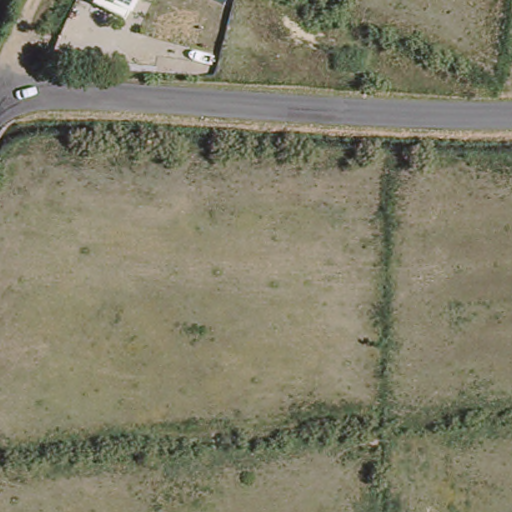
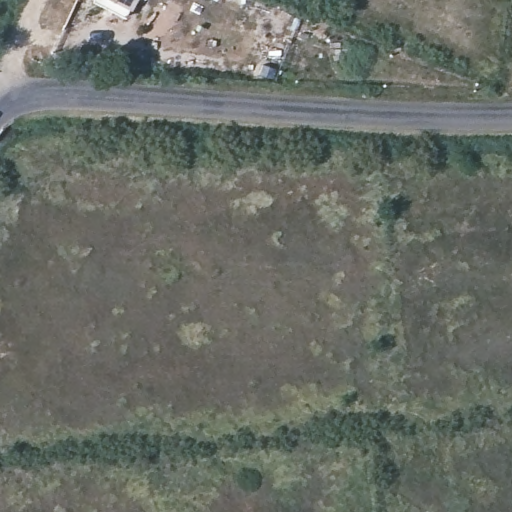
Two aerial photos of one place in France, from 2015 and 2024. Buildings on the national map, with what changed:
unchanged [(117,0),(136,0),(132,8),(117,0)]

